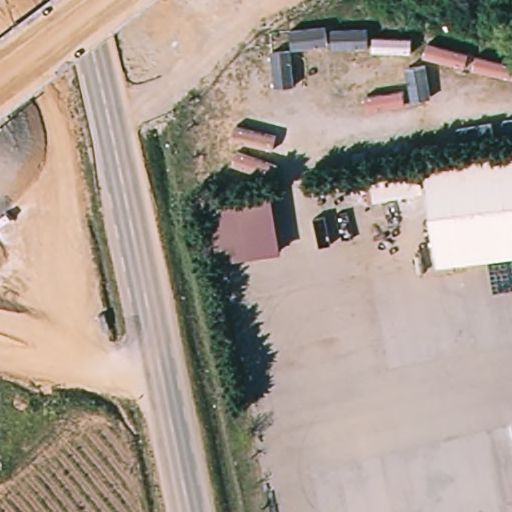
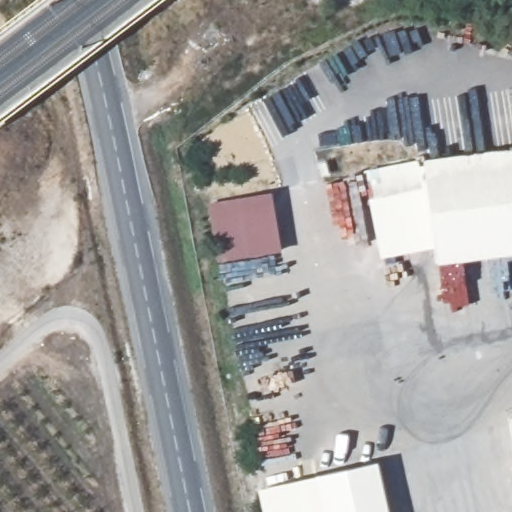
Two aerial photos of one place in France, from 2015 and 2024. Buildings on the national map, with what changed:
unchanged [(512,255),(442,265),(435,189),(377,199),(370,171),(512,152),(512,255)]
new [(365,172),(370,171),(377,198),(435,189),(440,247),(382,258),(365,172)]
unchanged [(283,250),(219,262),(208,203),(272,192),(283,250)]
new [(323,512),(315,474),(375,460),(386,512),(323,512)]
new [(265,512),(260,488),(315,474),(323,512),(265,512)]

